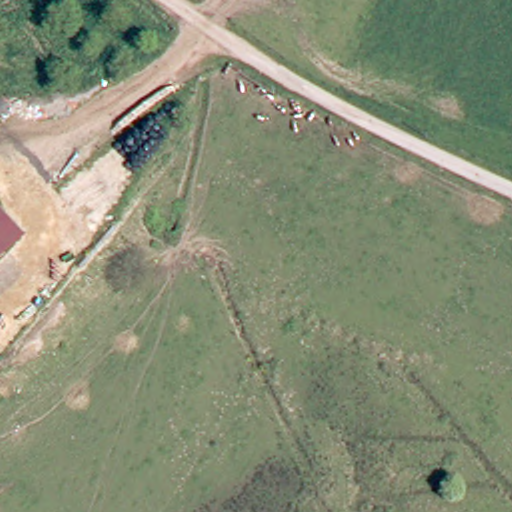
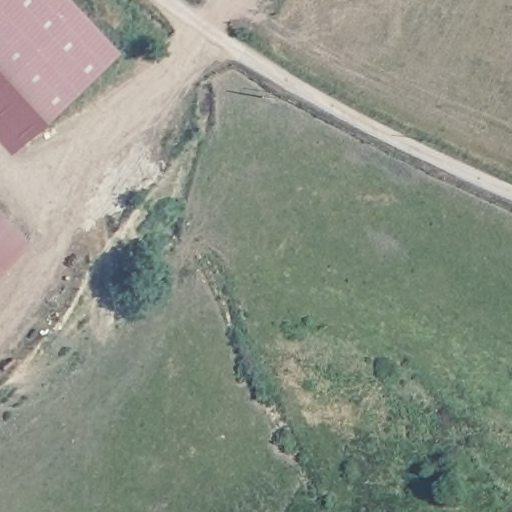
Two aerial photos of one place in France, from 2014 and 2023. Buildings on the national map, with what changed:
new [(112,53),(2,154),(0,151),(0,0),(64,0),(112,53)]
unchanged [(25,233),(0,259),(0,207),(25,233)]

